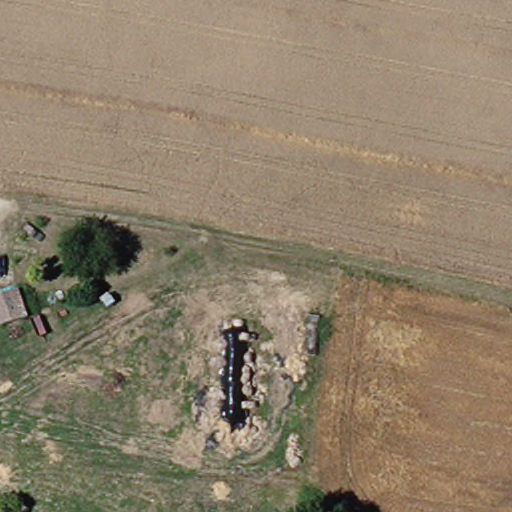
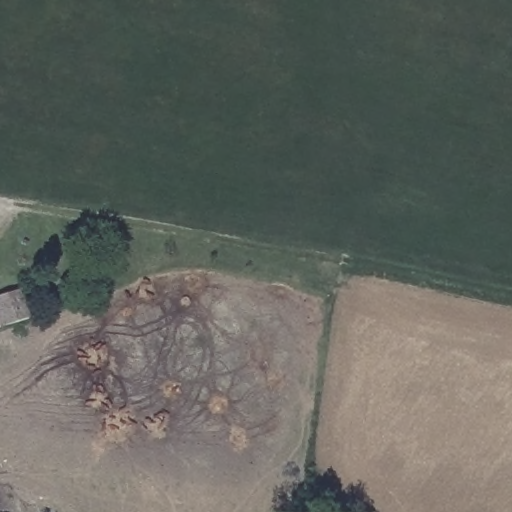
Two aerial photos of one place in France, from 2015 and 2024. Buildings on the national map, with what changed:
unchanged [(15,300),(25,331),(0,338),(0,306),(15,300)]

